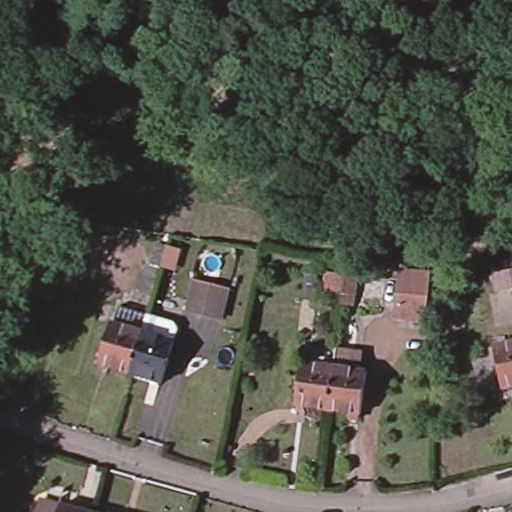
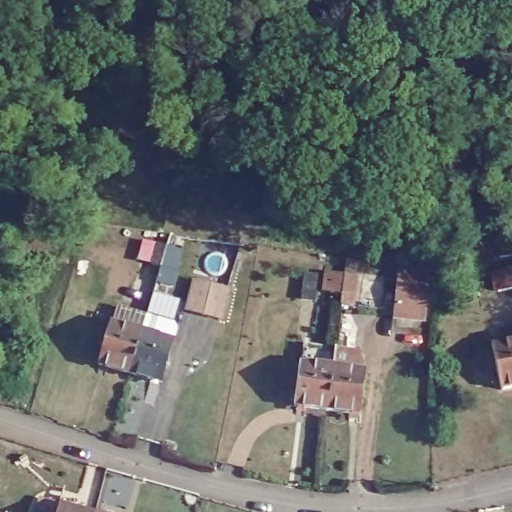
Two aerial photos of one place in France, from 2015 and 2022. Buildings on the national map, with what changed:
unchanged [(170,269),(161,266),(151,265),(156,244),(166,246),(175,249),(170,269)]
unchanged [(397,250),(432,253),(427,324),(389,322),(397,250)]
unchanged [(512,269),(512,281),(509,270),(512,269)]
unchanged [(316,274),(313,300),(301,299),(304,272),(316,274)]
unchanged [(356,275),(354,295),(341,293),(344,274),(356,275)]
unchanged [(221,316),(204,312),(188,308),(194,280),(211,285),(228,287),(221,316)]
unchanged [(126,380),(123,380),(93,371),(105,329),(108,330),(113,312),(141,320),(168,328),(171,334),(168,346),(156,388),(126,380)]
unchanged [(501,388),(493,345),(512,341),(512,386),(501,388)]
unchanged [(294,405),(301,362),(333,367),(326,410),(294,405)]
unchanged [(365,372),(359,414),(326,410),(333,367),(365,372)]
unchanged [(40,500),(59,505),(88,512),(37,512),(40,500)]

